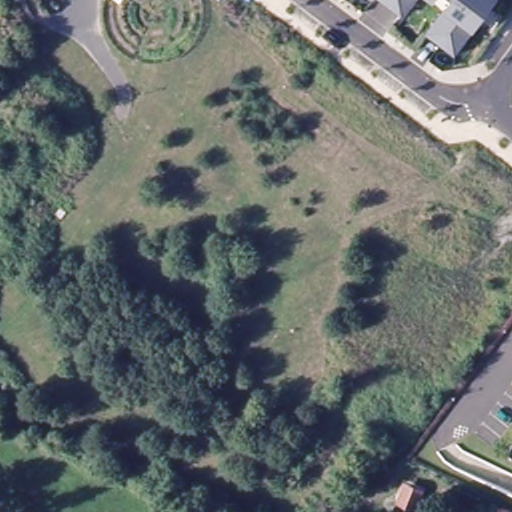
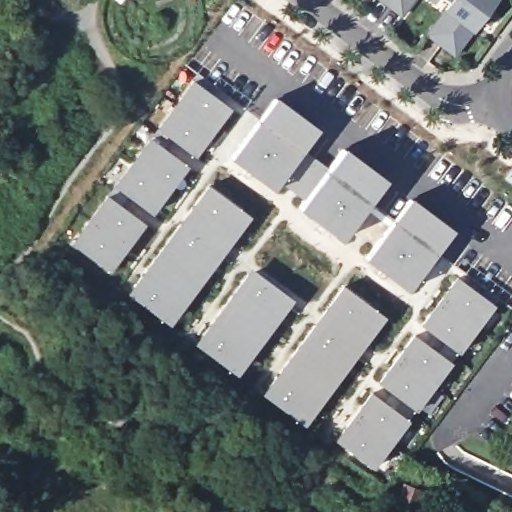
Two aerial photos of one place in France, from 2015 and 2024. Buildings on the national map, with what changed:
unchanged [(391,5),(384,0),(395,0),(391,5)]
unchanged [(405,15),(391,5),(395,0),(416,0),(405,15)]
unchanged [(492,4),(455,54),(430,35),(431,32),(452,4),(455,0),(487,0),(492,4)]
unchanged [(452,4),(447,0),(455,0),(452,4)]
new [(156,128),(192,80),(231,110),(195,157),(156,128)]
new [(320,129),(306,149),(328,166),(342,147),(384,180),(340,240),(297,210),(305,197),(281,180),(273,190),(230,160),(275,96),(320,129)]
new [(152,215),(113,186),(151,138),(187,167),(152,215)]
new [(250,217),(170,325),(126,294),(207,185),(250,217)]
new [(144,224),(110,272),(70,244),(105,195),(144,224)]
new [(411,199),(455,230),(407,291),(365,260),(411,199)]
new [(293,300),(237,376),(195,344),(250,267),(293,300)]
new [(495,305),(460,353),(419,326),(456,276),(495,305)]
new [(386,317),(305,427),(260,396),(342,285),(386,317)]
new [(452,365),(416,411),(376,382),(412,333),(452,365)]
new [(408,421),(374,467),(334,438),(370,392),(408,421)]
unchanged [(512,511),(512,512),(503,512),(505,507),(512,511)]

